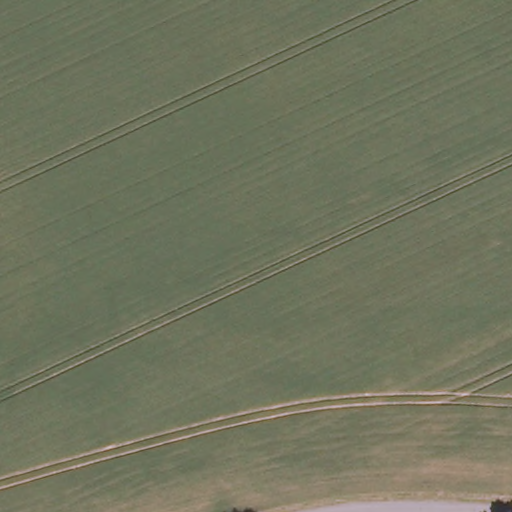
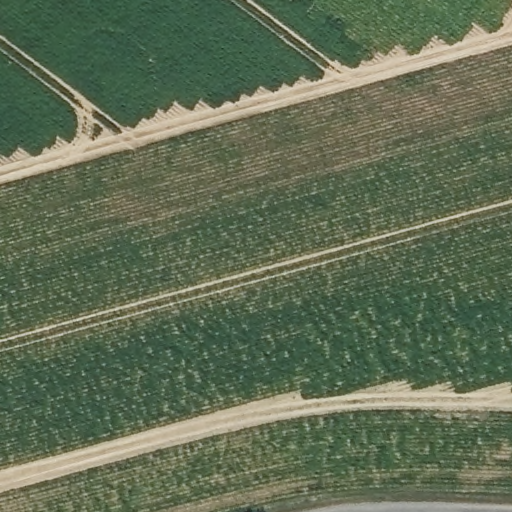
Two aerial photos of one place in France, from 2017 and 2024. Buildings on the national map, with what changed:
[]

